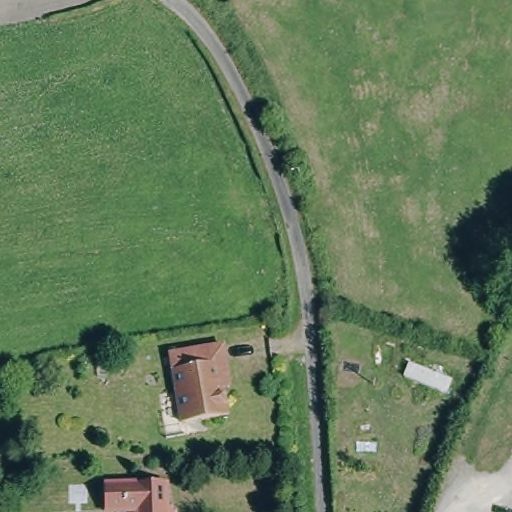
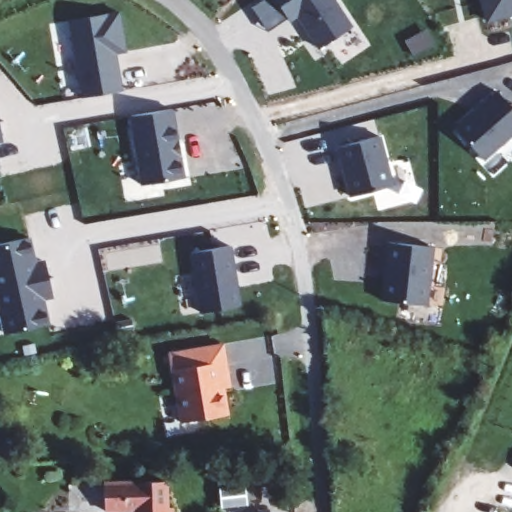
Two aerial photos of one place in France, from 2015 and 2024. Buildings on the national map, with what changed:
new [(322,50),(307,28),(309,27),(305,20),(302,20),(300,16),(292,22),(277,0),(335,0),(354,29),(322,50)]
new [(485,24),(481,0),(512,0),(512,16),(485,24)]
new [(120,11),(127,52),(116,55),(122,90),(82,97),(68,20),(89,16),(120,11)]
new [(485,160),(455,127),(497,90),(512,108),(512,136),(485,160)]
new [(178,157),(182,156),(185,177),(140,185),(128,116),(170,109),(178,157)]
new [(0,143),(0,129),(3,142),(0,143)]
new [(395,185),(349,196),(335,147),(382,135),(395,185)]
new [(44,258),(52,297),(45,302),(50,320),(38,326),(2,334),(0,323),(0,245),(32,237),(37,260),(44,258)]
new [(387,241),(435,247),(429,305),(380,300),(387,241)]
new [(242,305),(200,312),(190,252),(232,245),(242,305)]
unchanged [(225,373),(217,375),(224,416),(178,423),(167,353),(220,343),(225,373)]
unchanged [(158,485),(160,511),(165,510),(165,512),(97,512),(95,488),(158,485)]

